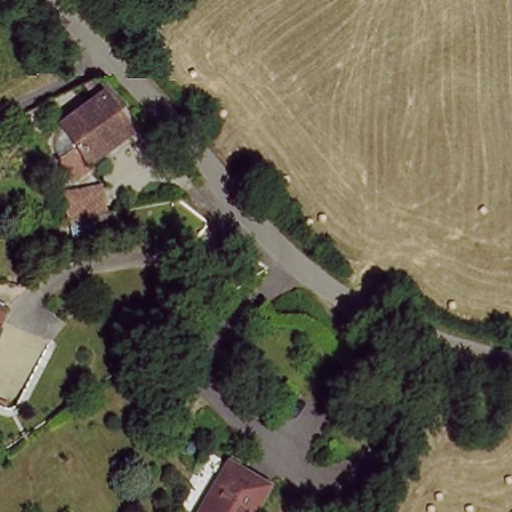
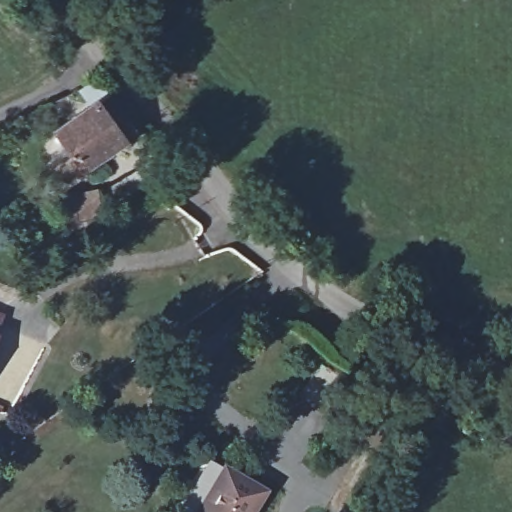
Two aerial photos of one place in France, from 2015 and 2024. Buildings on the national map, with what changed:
unchanged [(111,104),(130,149),(63,176),(53,152),(73,143),(64,122),(111,104)]
unchanged [(221,498),(232,482),(225,477),(237,458),(273,482),(254,512),(202,512),(214,493),(221,498)]

